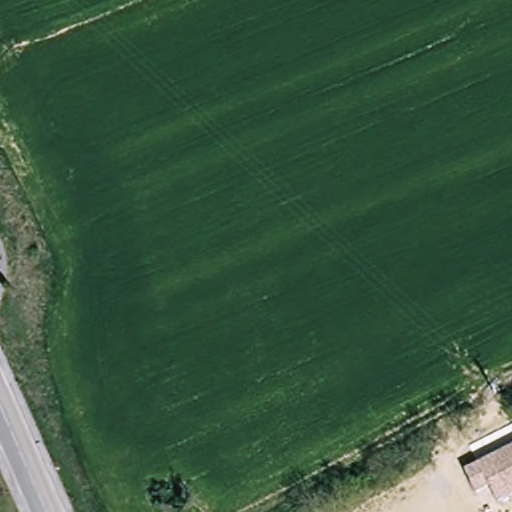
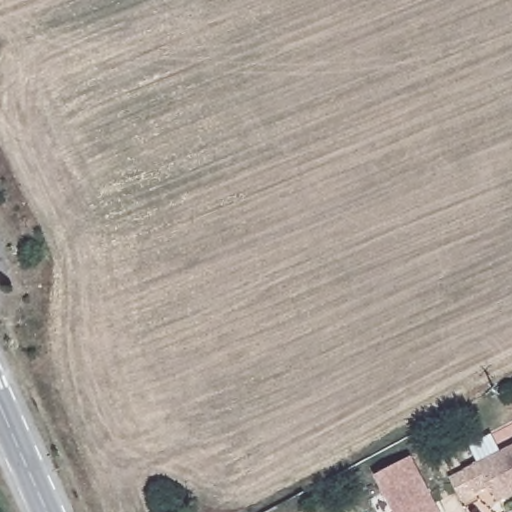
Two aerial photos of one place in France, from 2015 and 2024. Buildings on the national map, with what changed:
unchanged [(500,503),(491,487),(476,493),(463,470),(512,445),(512,497),(500,503)]
new [(411,457),(439,512),(395,512),(376,475),(411,457)]

